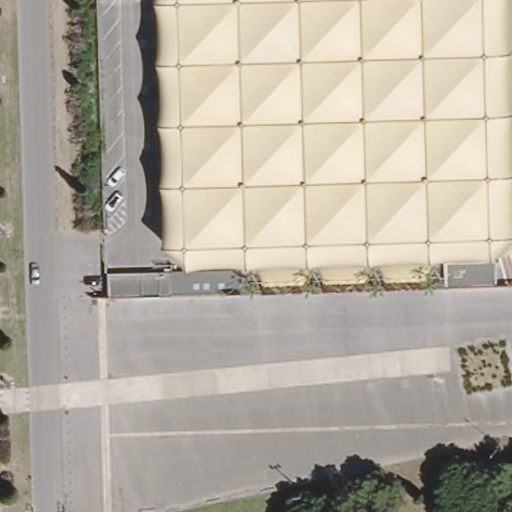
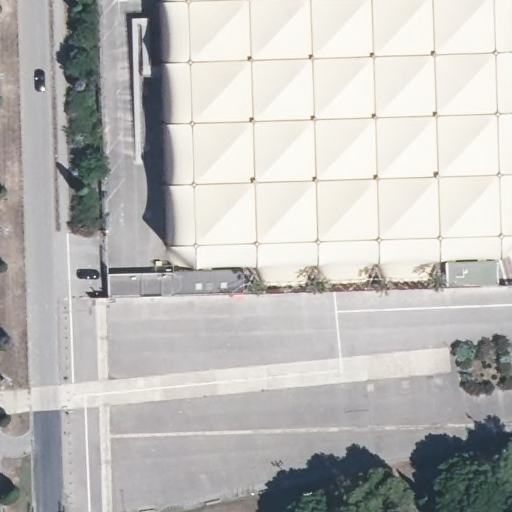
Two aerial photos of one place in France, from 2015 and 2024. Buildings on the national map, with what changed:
unchanged [(177,261),(198,259),(197,257),(190,256),(182,251),(176,242),(172,231),(167,0),(512,0),(512,246),(508,247),(504,248),(503,274),(178,283),(177,261)]
unchanged [(104,277),(166,275),(167,297),(105,300),(104,277)]

